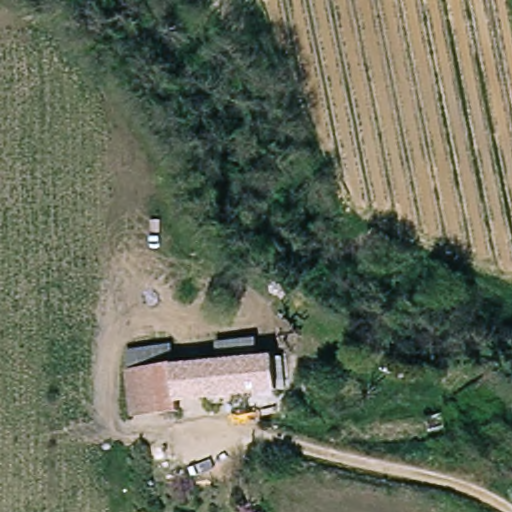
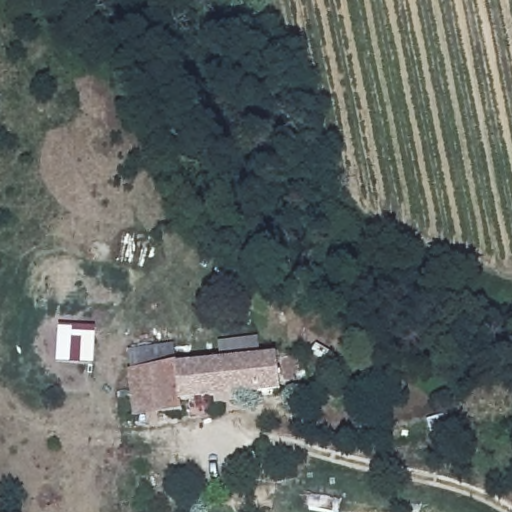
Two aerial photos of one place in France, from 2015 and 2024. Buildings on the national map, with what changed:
unchanged [(178,366),(178,373),(222,367),(220,342),(256,338),(259,363),(273,361),(281,360),(284,395),(276,395),(178,407),(178,416),(136,420),(130,370),(178,366)]
unchanged [(175,344),(178,366),(130,370),(128,350),(175,344)]

